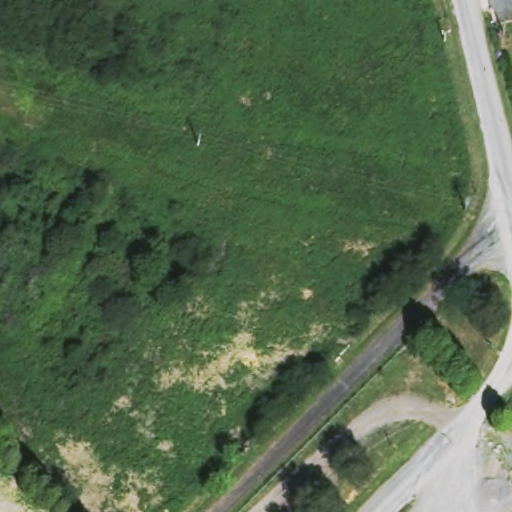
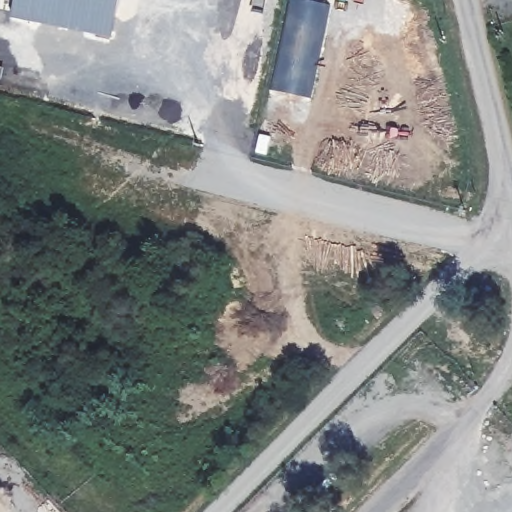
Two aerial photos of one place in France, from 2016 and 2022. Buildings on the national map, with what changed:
new [(12,0),(114,0),(106,32),(9,12),(12,0)]
new [(289,0),(321,0),(331,2),(310,96),(269,87),(289,0)]

